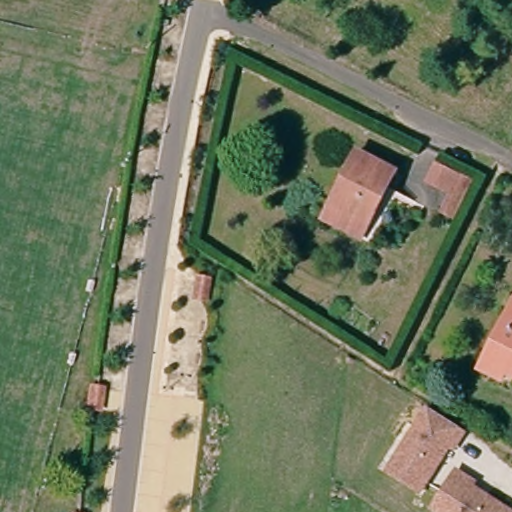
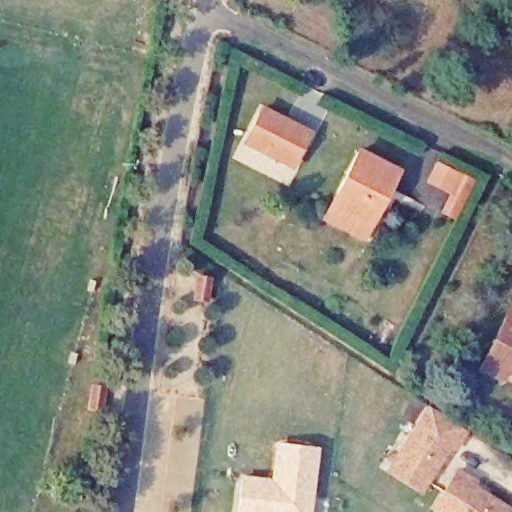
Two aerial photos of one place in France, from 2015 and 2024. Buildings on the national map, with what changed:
new [(239,145),(260,105),(312,131),(292,170),(239,145)]
unchanged [(327,221),(335,204),(359,155),(396,173),(373,222),(365,239),(327,221)]
unchanged [(476,180),(458,216),(446,211),(456,192),(435,181),(443,164),(476,180)]
unchanged [(492,353),(511,312),(512,310),(512,373),(510,372),(508,376),(486,366),(492,353)]
unchanged [(419,495),(386,473),(427,410),(463,433),(450,453),(446,452),(419,495)]
new [(269,477),(275,441),(320,447),(312,512),(235,512),(240,473),(269,477)]
unchanged [(434,512),(432,511),(455,476),(470,487),(469,490),(504,512),(434,512)]

